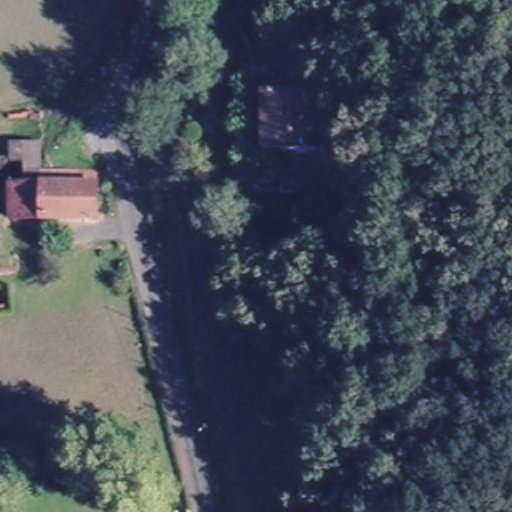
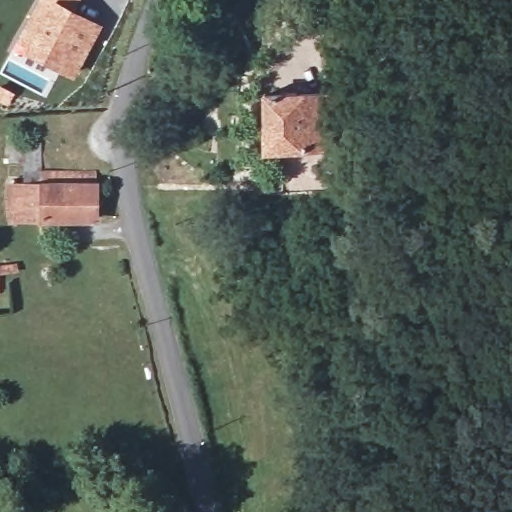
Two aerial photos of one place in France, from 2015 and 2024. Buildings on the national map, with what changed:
new [(81,0),(77,10),(104,25),(75,78),(11,49),(36,0),(81,0)]
unchanged [(260,153),(260,95),(332,96),(332,153),(260,153)]
unchanged [(9,226),(9,186),(24,186),(22,166),(8,166),(7,148),(41,147),(42,176),(96,175),(97,225),(9,226)]

